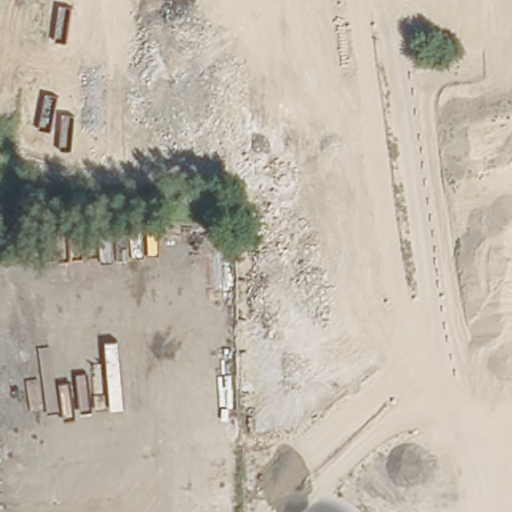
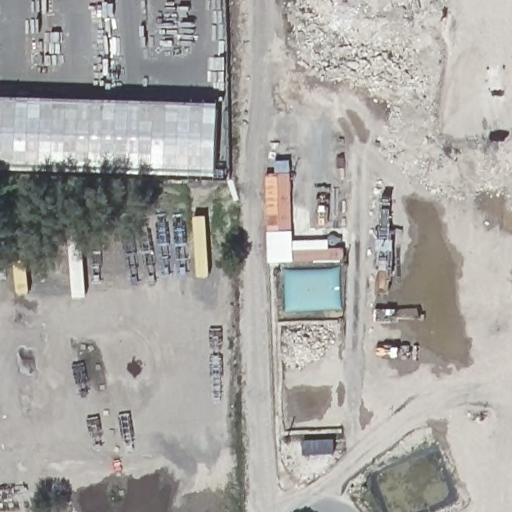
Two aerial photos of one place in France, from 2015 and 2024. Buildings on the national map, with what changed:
new [(0,170),(0,96),(218,102),(215,176),(0,170)]

